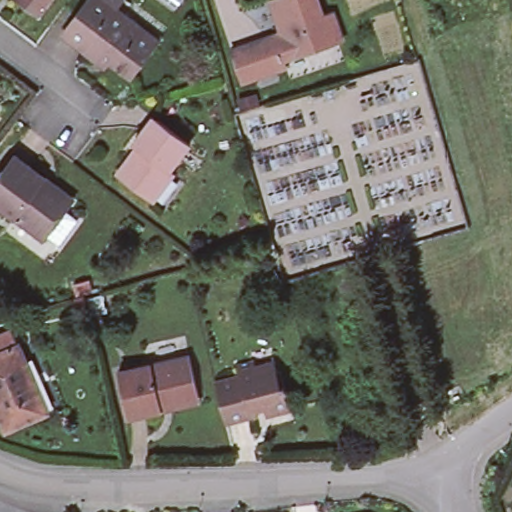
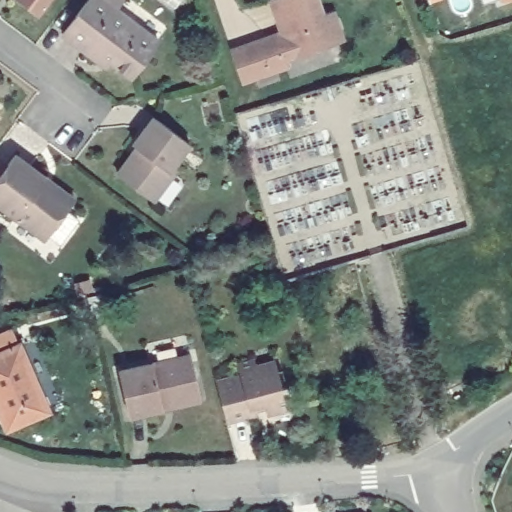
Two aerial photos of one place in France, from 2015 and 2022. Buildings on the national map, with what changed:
unchanged [(10,1),(12,0),(50,0),(35,19),(10,1)]
unchanged [(120,0),(112,11),(155,43),(127,79),(100,59),(95,64),(80,53),(82,49),(62,33),(87,0),(120,0)]
unchanged [(260,41),(280,33),(268,0),(315,0),(320,11),(328,8),(339,36),(281,57),(283,64),(240,80),(228,47),(257,36),(260,41)]
unchanged [(127,156),(131,159),(136,152),(130,147),(150,120),(186,146),(167,173),(170,175),(149,203),(113,176),(127,156)]
unchanged [(40,237),(35,242),(0,215),(0,167),(7,157),(37,180),(65,201),(62,205),(56,213),(69,222),(52,246),(40,237)]
unchanged [(18,355),(37,424),(0,433),(0,343),(14,339),(18,355)]
unchanged [(159,411),(127,417),(116,371),(188,356),(197,397),(197,403),(159,411)]
unchanged [(233,376),(230,365),(248,360),(250,368),(270,362),(275,384),(279,383),(285,406),(260,412),(259,406),(250,408),(252,415),(220,423),(210,382),(233,376)]

